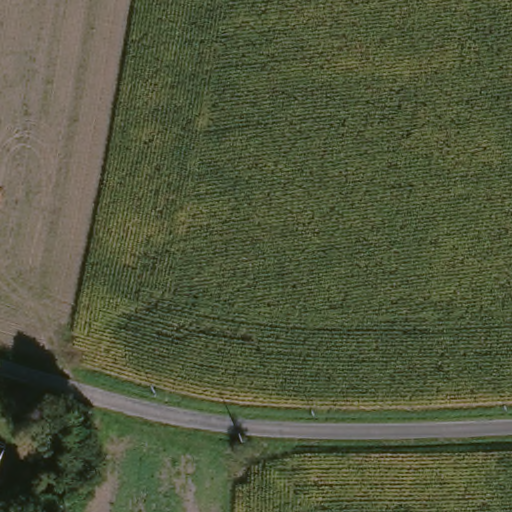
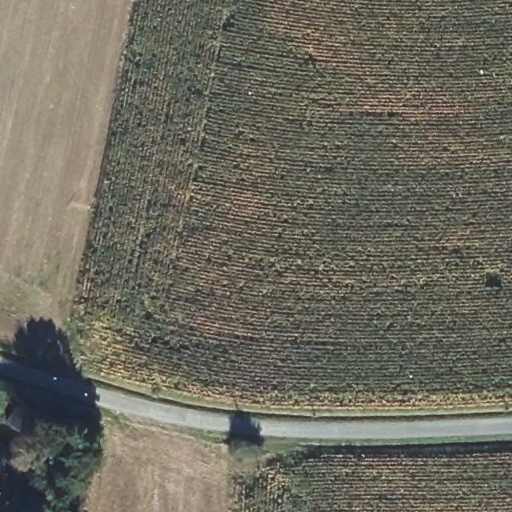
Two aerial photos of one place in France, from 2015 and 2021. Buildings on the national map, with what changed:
unchanged [(0,464),(0,452),(4,454),(0,464)]

